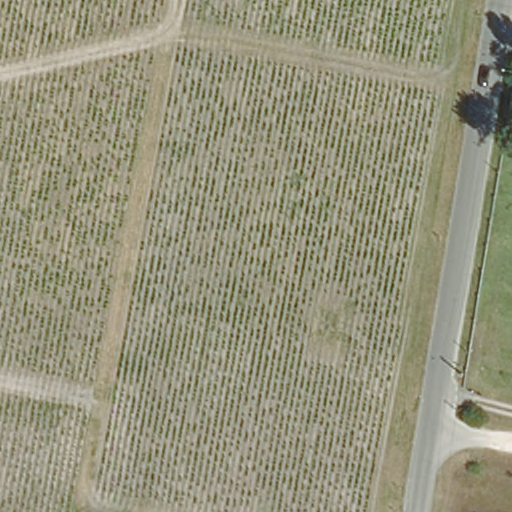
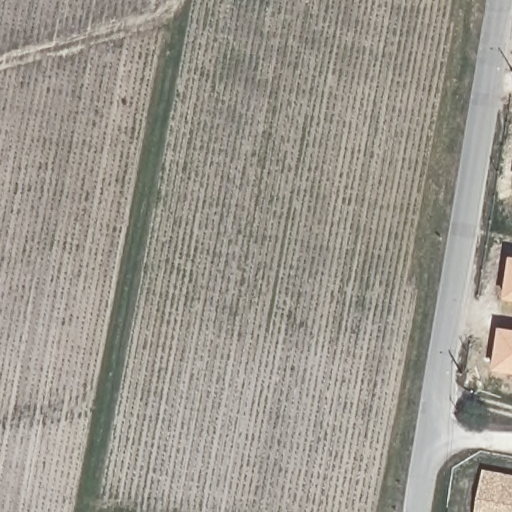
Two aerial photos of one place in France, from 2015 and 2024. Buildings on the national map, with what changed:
new [(506,301),(512,262),(512,302),(506,301)]
new [(501,329),(512,331),(512,375),(496,372),(501,329)]
new [(512,476),(512,512),(477,512),(485,471),(512,476)]

